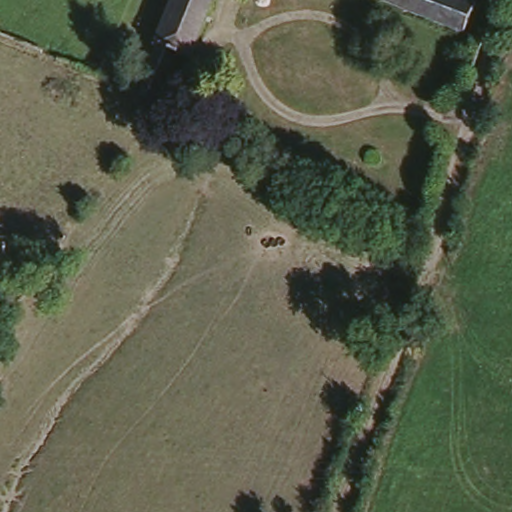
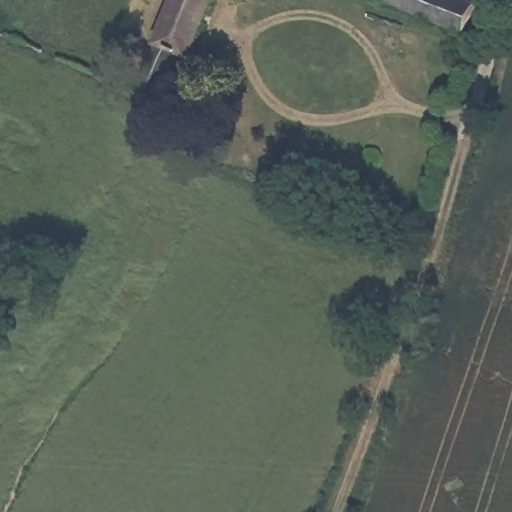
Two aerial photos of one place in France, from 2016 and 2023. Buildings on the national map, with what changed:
unchanged [(157,98),(135,90),(174,0),(215,0),(192,54),(179,50),(157,98)]
unchanged [(468,0),(457,30),(378,0),(468,0)]

